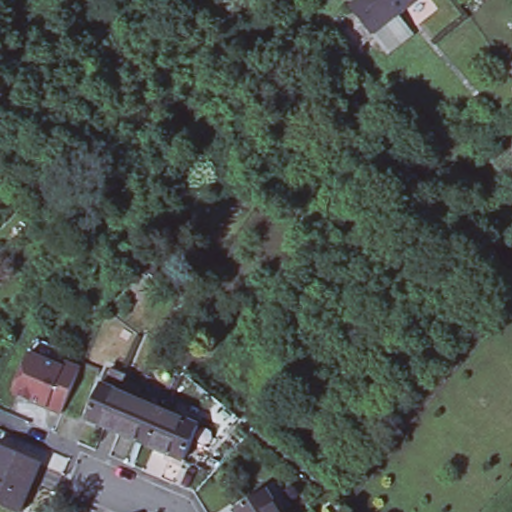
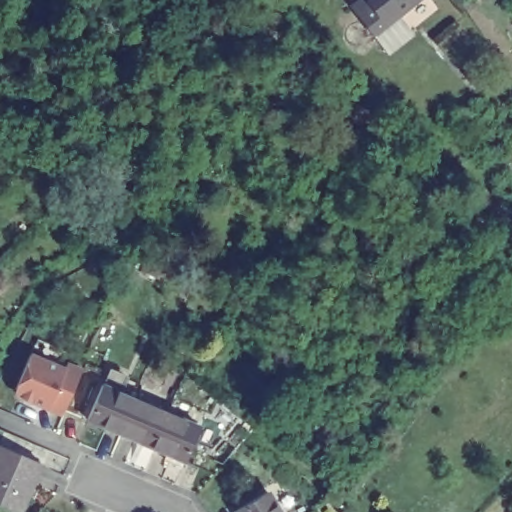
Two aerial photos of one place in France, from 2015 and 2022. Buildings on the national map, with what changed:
unchanged [(377,34),(360,11),(376,0),(421,0),(377,34)]
unchanged [(65,415),(50,408),(52,403),(37,396),(35,402),(20,396),(17,387),(30,355),(65,370),(67,365),(82,371),(65,415)]
unchanged [(105,390),(112,375),(130,382),(123,398),(137,403),(122,438),(90,425),(105,390)]
unchanged [(155,452),(122,438),(137,403),(170,417),(155,452)]
unchanged [(199,430),(184,464),(155,452),(170,417),(199,430)]
unchanged [(21,511),(0,503),(0,444),(41,462),(21,511)]
unchanged [(269,492),(282,512),(239,512),(238,510),(269,492)]

